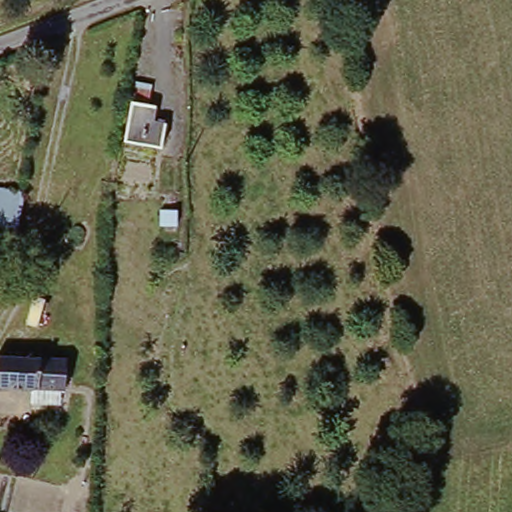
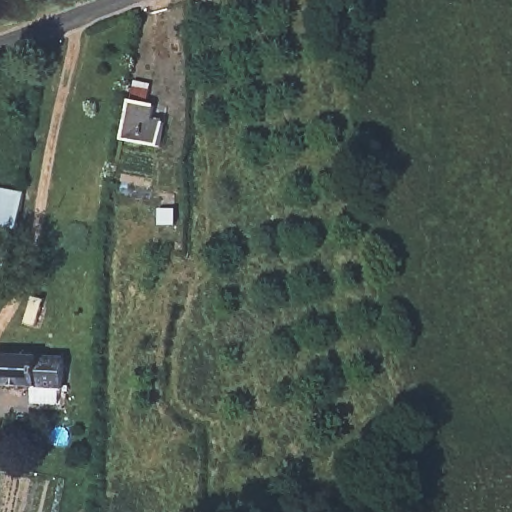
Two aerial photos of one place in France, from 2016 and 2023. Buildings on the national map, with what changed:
unchanged [(137,84),(154,88),(151,100),(159,102),(156,117),(168,119),(164,143),(127,137),(135,98),(137,84)]
unchanged [(28,192),(23,232),(0,227),(0,187),(17,189),(28,192)]
unchanged [(174,212),(174,228),(158,229),(158,213),(174,212)]
unchanged [(68,359),(67,390),(0,387),(0,357),(68,359)]

